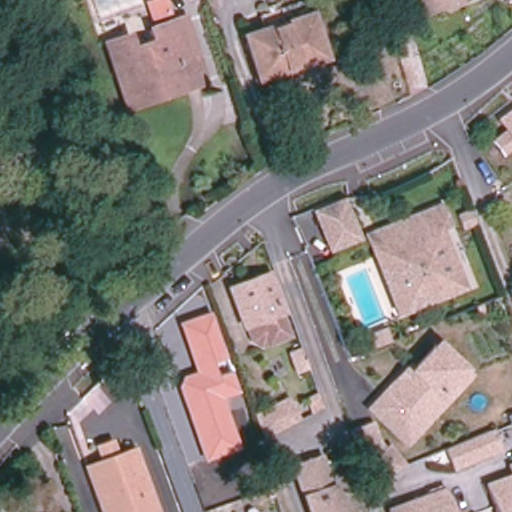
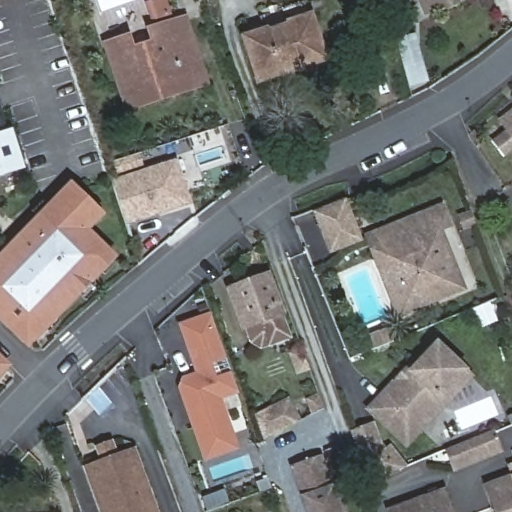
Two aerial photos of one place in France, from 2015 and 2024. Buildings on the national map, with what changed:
unchanged [(436,11),(435,10),(434,7),(420,13),(415,0),(453,0),(455,3),(436,11)]
unchanged [(323,58),(259,80),(246,38),(310,17),(323,58)]
unchanged [(127,108),(125,98),(107,45),(128,39),(132,52),(156,44),(151,30),(185,19),(202,72),(205,82),(127,108)]
unchanged [(498,154),(490,142),(503,131),(496,120),(512,108),(512,143),(498,154)]
new [(0,178),(0,133),(13,129),(26,169),(0,178)]
new [(179,160),(191,200),(129,219),(116,180),(179,160)]
new [(0,321),(0,254),(70,181),(106,213),(90,230),(119,256),(28,349),(0,321)]
unchanged [(363,241),(330,252),(314,213),(349,198),(362,234),(444,199),(452,228),(443,232),(465,291),(400,315),(363,241)]
unchanged [(286,323),(250,337),(235,299),(271,286),(286,323)]
unchanged [(239,393),(222,399),(240,449),(202,462),(176,389),(180,377),(193,373),(176,323),(209,312),(225,359),(211,364),(215,378),(230,372),(239,393)]
unchanged [(405,441),(372,411),(369,407),(408,366),(411,369),(436,343),(469,374),(444,400),(418,427),(405,441)]
new [(0,353),(12,366),(0,378),(0,353)]
unchanged [(297,421),(262,438),(254,415),(287,399),(297,421)]
new [(378,474),(367,462),(363,456),(357,445),(352,432),(371,426),(377,441),(383,448),(380,451),(395,468),(378,474)]
unchanged [(498,452),(455,468),(448,450),(485,436),(491,433),(498,452)]
unchanged [(102,462),(97,448),(112,442),(117,456),(134,450),(157,512),(102,512),(86,468),(102,462)]
unchanged [(338,512),(308,512),(292,468),(318,459),(338,512)]
unchanged [(511,476),(512,475),(512,477),(511,476)]
unchanged [(512,486),(512,512),(495,512),(488,495),(512,486)]
unchanged [(451,512),(398,512),(445,495),(451,512)]

